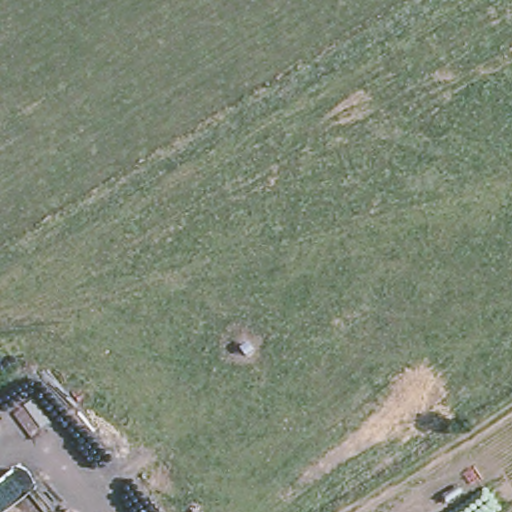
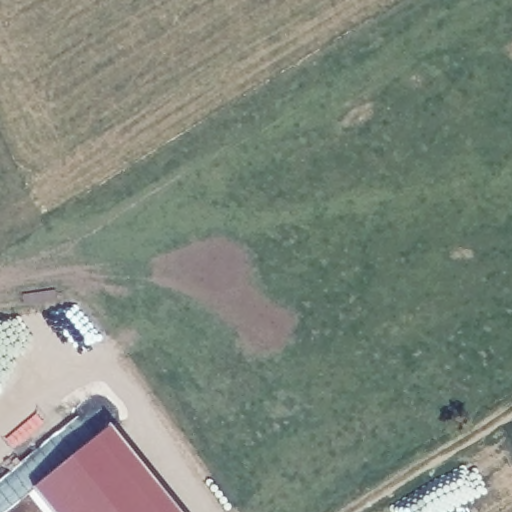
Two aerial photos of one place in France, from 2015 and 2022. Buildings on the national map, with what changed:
new [(181,512),(55,512),(36,488),(110,425),(181,512)]

